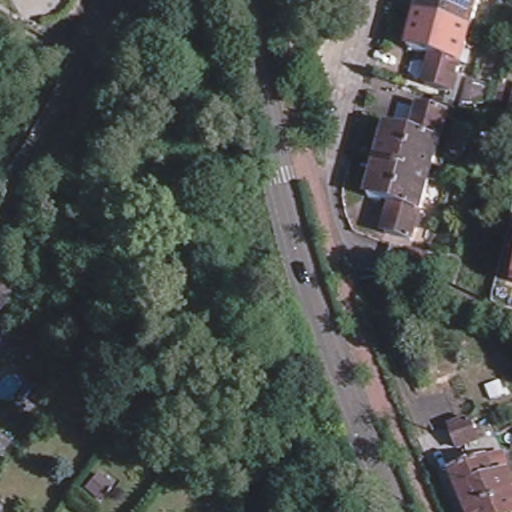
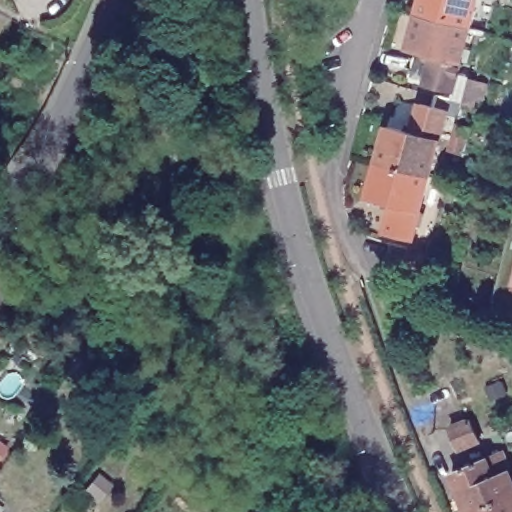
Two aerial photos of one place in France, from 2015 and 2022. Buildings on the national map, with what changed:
unchanged [(477,0),(470,26),(419,10),(421,0),(477,0)]
unchanged [(427,81),(435,53),(409,46),(419,10),(470,26),(460,60),(452,88),(427,81)]
unchanged [(412,132),(420,105),(429,106),(432,95),(439,97),(439,92),(465,101),(472,80),(487,85),(477,112),(463,107),(460,116),(445,113),(439,139),(429,176),(379,161),(389,126),(412,132)]
unchanged [(462,117),(474,121),(467,144),(455,140),(462,117)]
unchanged [(384,231),(392,203),(369,196),(379,161),(429,176),(420,211),(412,238),(384,231)]
unchanged [(409,268),(392,263),(399,244),(415,249),(431,255),(429,264),(427,263),(424,272),(421,272),(409,268)]
unchanged [(0,301),(0,263),(24,283),(5,306),(0,301)]
unchanged [(476,418),(483,438),(464,447),(456,427),(476,418)]
unchanged [(509,485),(460,503),(452,481),(445,462),(445,461),(476,448),(481,460),(487,459),(490,466),(500,463),(509,485)]
unchanged [(460,503),(509,485),(512,494),(512,512),(464,512),(460,503)]
unchanged [(3,512),(0,512),(0,505),(5,509),(3,512)]

